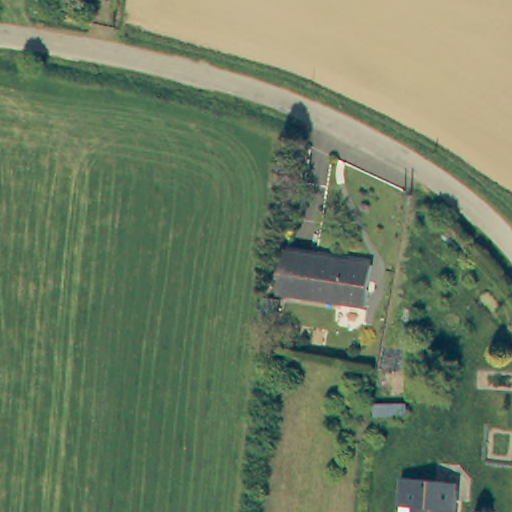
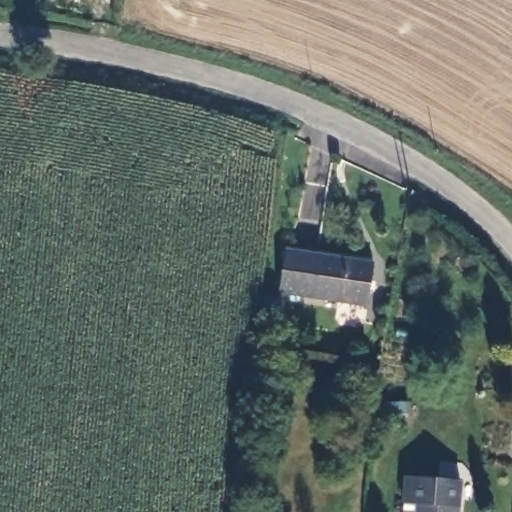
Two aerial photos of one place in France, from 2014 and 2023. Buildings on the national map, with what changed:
unchanged [(282,247),(371,255),(367,298),(277,288),(282,247)]
unchanged [(457,505),(456,512),(401,512),(402,499),(404,472),(459,477),(457,505)]

